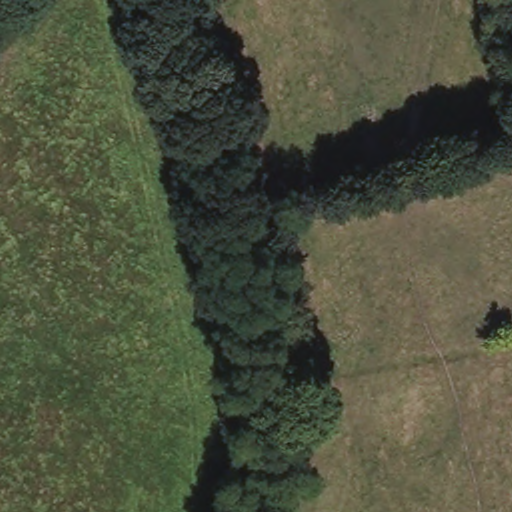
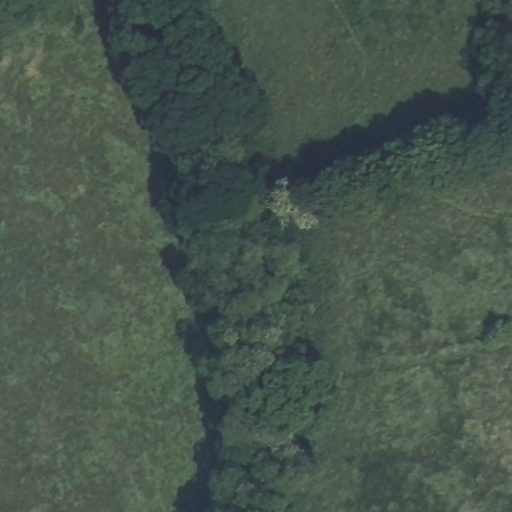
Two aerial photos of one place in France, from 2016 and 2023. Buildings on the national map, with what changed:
[]

